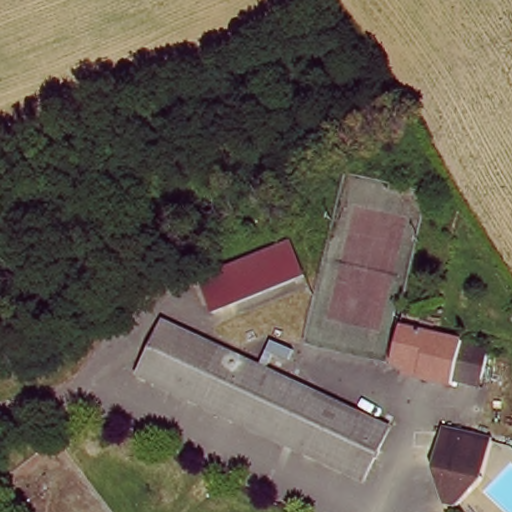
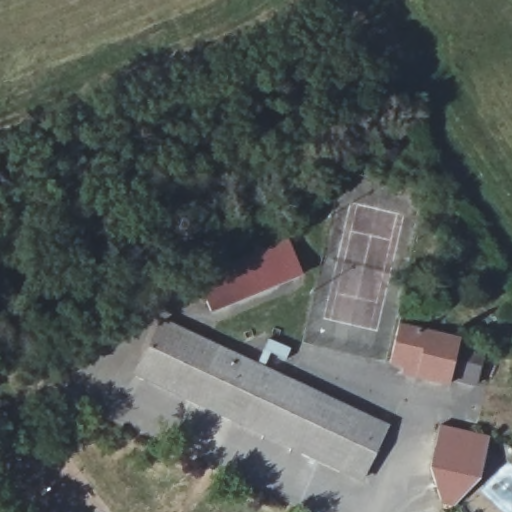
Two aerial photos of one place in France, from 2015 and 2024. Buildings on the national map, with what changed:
unchanged [(195,277),(287,245),(300,280),(209,313),(195,277)]
unchanged [(133,378),(158,325),(388,431),(364,484),(133,378)]
unchanged [(412,365),(397,364),(398,330),(488,332),(487,367),(461,366),(460,375),(441,375),(411,376),(412,365)]
unchanged [(480,483),(454,510),(440,505),(428,467),(437,433),(483,444),(480,483)]

